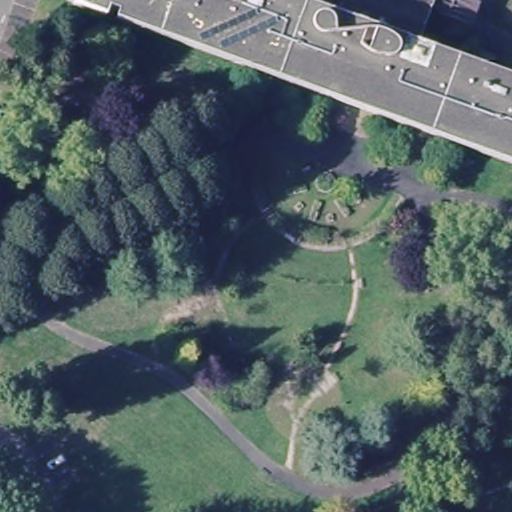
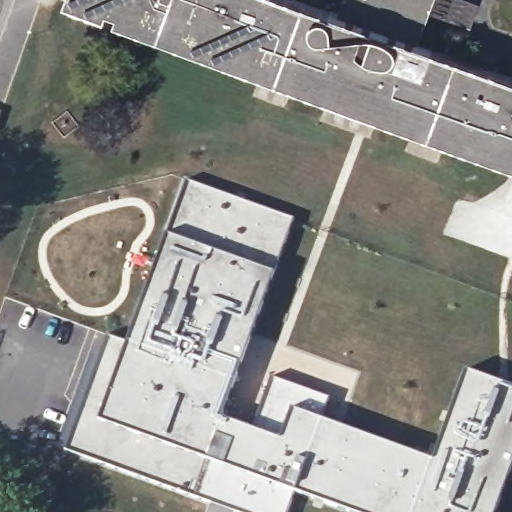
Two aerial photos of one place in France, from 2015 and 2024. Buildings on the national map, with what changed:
unchanged [(512,75),(512,155),(106,12),(104,20),(72,10),(76,0),(295,0),(337,14),(342,0),(434,0),(420,43),(512,75)]
new [(2,112),(0,118),(0,111),(2,112)]
new [(127,347),(185,184),(294,222),(223,422),(253,433),(272,380),(331,401),(323,423),(434,463),(466,372),(512,388),(512,474),(499,512),(342,512),(297,496),(291,512),(249,512),(239,509),(245,490),(221,482),(212,508),(66,455),(107,339),(127,347)]
new [(221,482),(245,490),(239,509),(249,512),(225,512),(212,508),(221,482)]

